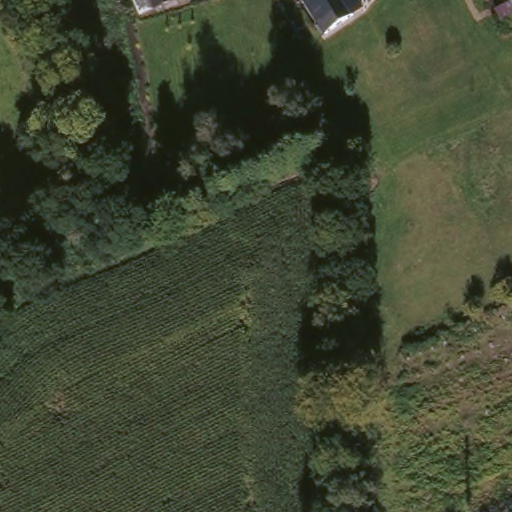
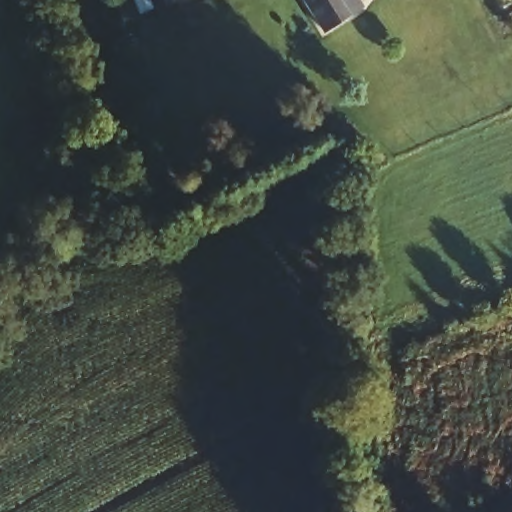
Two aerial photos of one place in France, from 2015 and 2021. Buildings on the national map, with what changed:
unchanged [(134,0),(173,0),(140,14),(134,0)]
unchanged [(299,0),(339,0),(352,20),(323,39),(299,0)]

